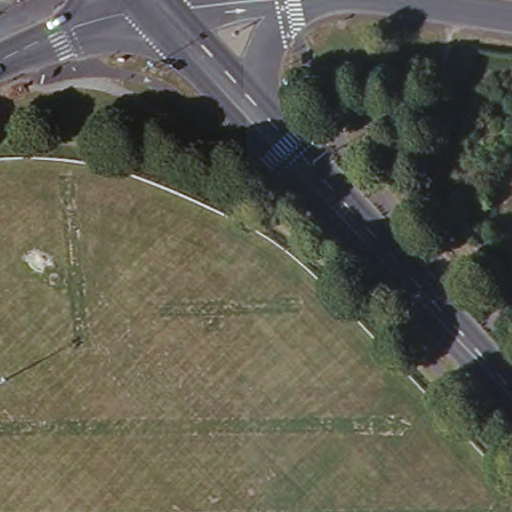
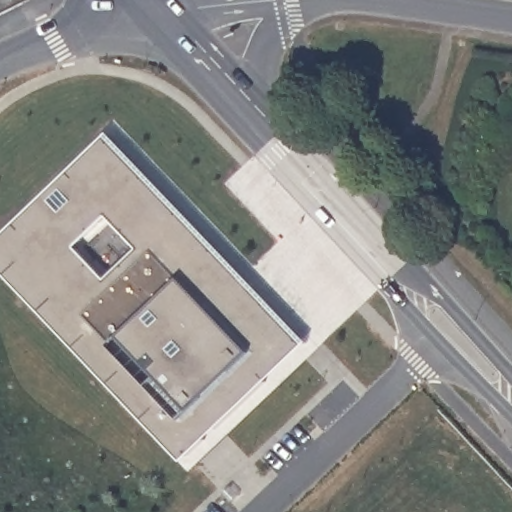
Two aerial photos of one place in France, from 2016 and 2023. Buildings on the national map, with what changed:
new [(7,0),(15,0),(14,2),(7,0)]
new [(177,458),(0,263),(0,221),(107,125),(304,337),(177,458)]

